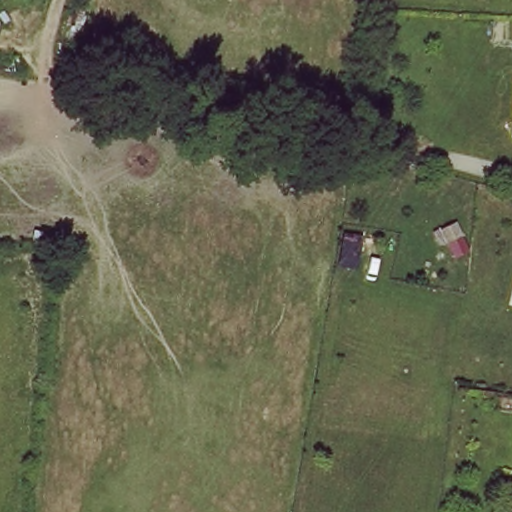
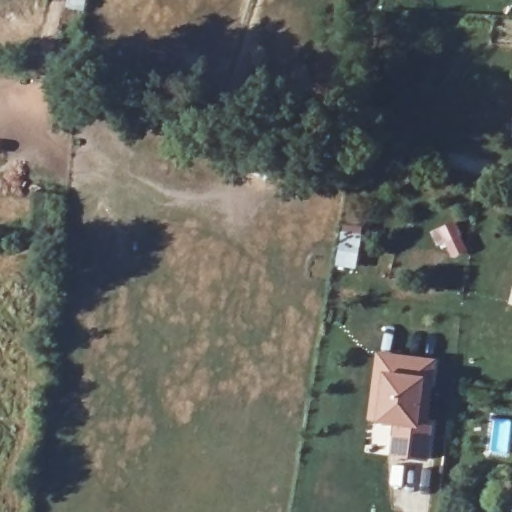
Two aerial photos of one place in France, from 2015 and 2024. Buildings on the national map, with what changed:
new [(431,461),(410,460),(389,457),(392,426),(367,423),(376,351),(437,360),(429,383),(424,423),(435,424),(431,461)]

